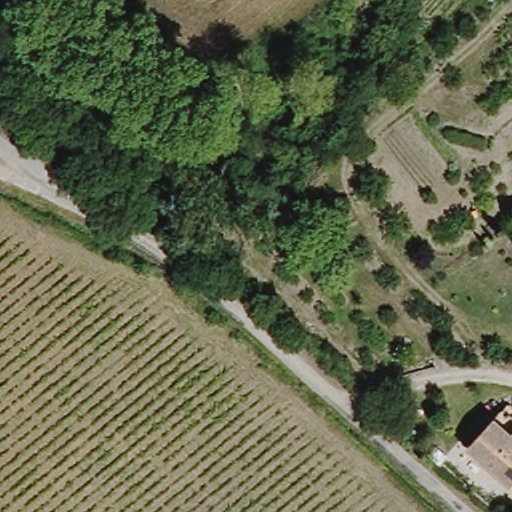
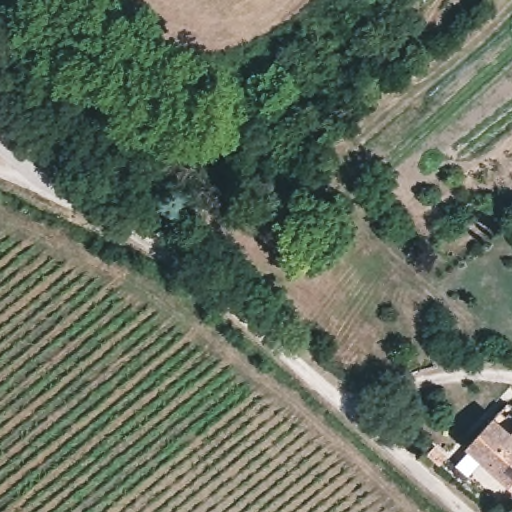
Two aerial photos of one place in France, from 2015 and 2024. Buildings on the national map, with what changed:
unchanged [(495,423),(510,438),(512,436),(512,490),(467,451),(495,423)]

